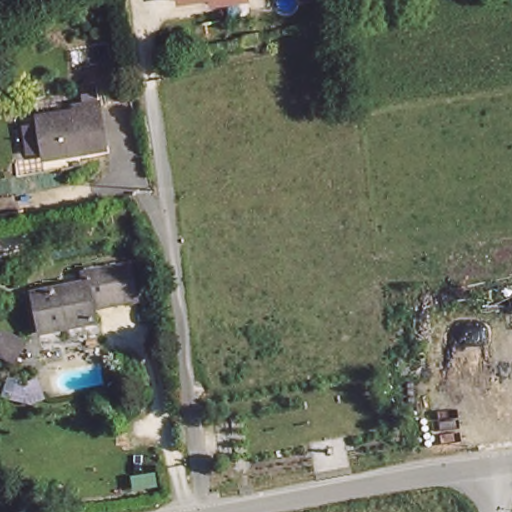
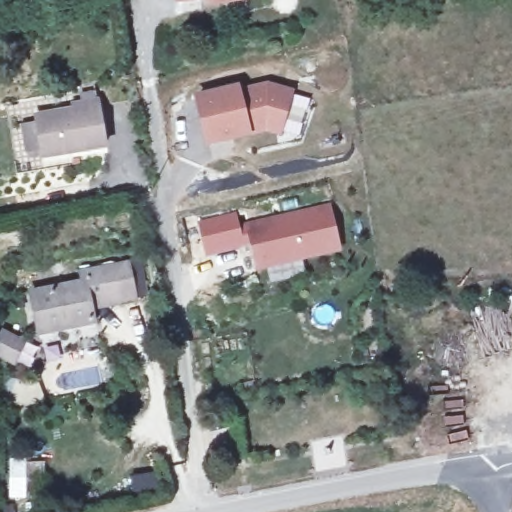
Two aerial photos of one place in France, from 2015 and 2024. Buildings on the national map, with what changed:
unchanged [(205,0),(236,0),(205,3),(205,0)]
new [(239,83),(240,86),(267,81),(295,89),(281,137),(266,133),(252,135),(206,148),(195,94),(239,83)]
unchanged [(42,156),(36,114),(72,109),(71,103),(97,99),(98,105),(104,147),(42,156)]
new [(330,203),(342,252),(255,271),(250,247),(245,223),(330,203)]
new [(250,247),(206,257),(198,223),(243,213),(245,223),(250,247)]
unchanged [(91,279),(91,268),(116,264),(130,263),(132,298),(118,299),(96,302),(97,315),(43,321),(40,284),(91,279)]

